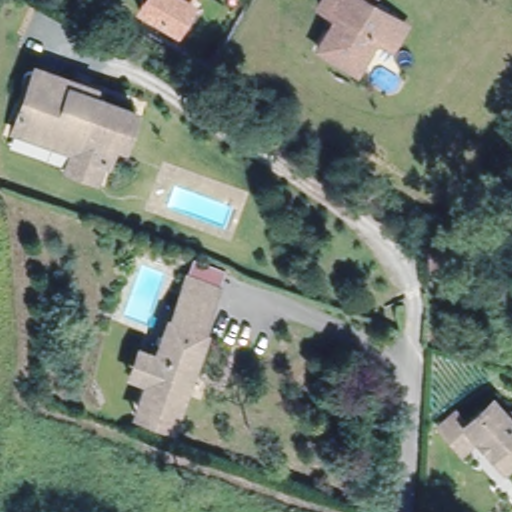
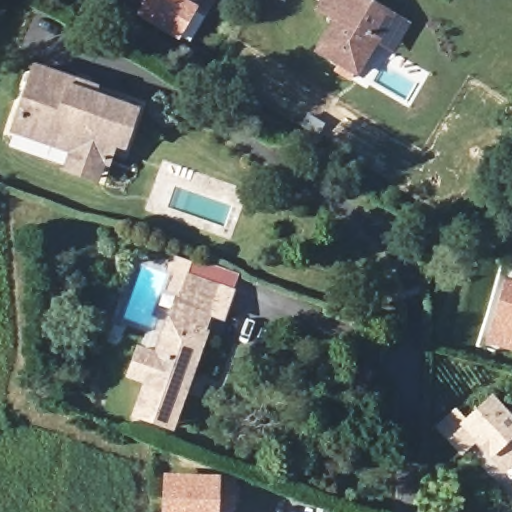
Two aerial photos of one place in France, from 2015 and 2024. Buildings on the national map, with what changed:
unchanged [(200,7),(179,42),(136,15),(145,0),(192,0),(191,2),(200,7)]
unchanged [(377,34),(361,63),(322,41),(341,9),(325,0),(381,0),(393,7),(409,16),(393,44),(377,34)]
unchanged [(71,170),(78,152),(19,131),(40,68),(99,89),(96,96),(139,110),(139,113),(137,112),(127,142),(128,143),(127,145),(116,141),(110,159),(111,159),(110,163),(106,161),(100,180),(71,170)]
unchanged [(165,426),(143,418),(135,415),(139,406),(147,382),(130,376),(140,350),(156,356),(165,332),(167,333),(187,276),(219,288),(199,344),(201,345),(192,370),(190,370),(182,392),(185,393),(175,418),(172,428),(165,426)]
new [(506,276),(512,278),(512,351),(485,343),(506,276)]
unchanged [(480,443),(465,457),(442,433),(457,419),(468,431),(495,406),(510,421),(512,421),(512,470),(508,473),(480,443)]
new [(219,510),(219,512),(162,512),(162,503),(164,472),(219,474),(236,475),(236,511),(219,510)]

